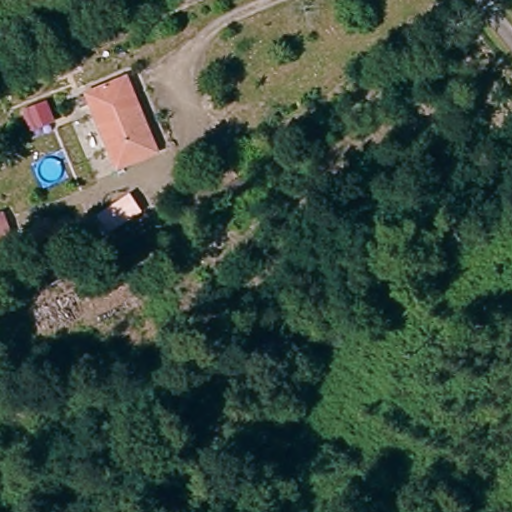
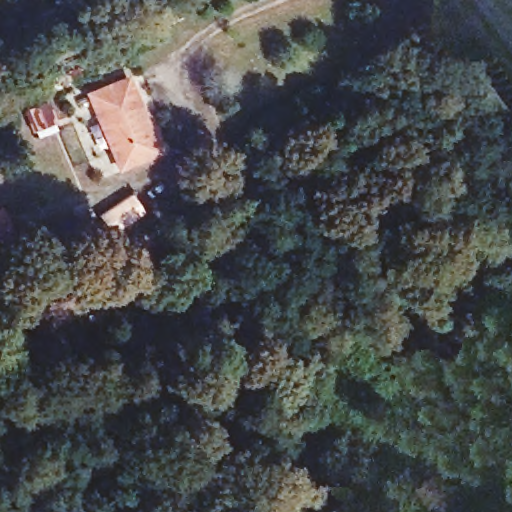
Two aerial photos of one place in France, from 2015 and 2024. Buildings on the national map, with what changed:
unchanged [(128,81),(159,153),(120,170),(90,98),(128,81)]
unchanged [(40,121),(46,139),(24,149),(16,131),(40,121)]
unchanged [(99,255),(86,236),(120,213),(132,232),(99,255)]

